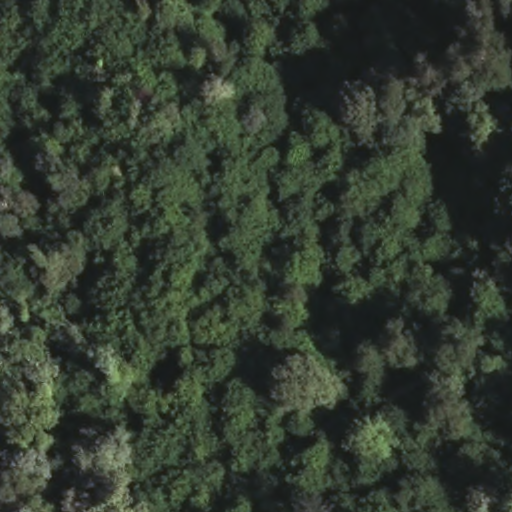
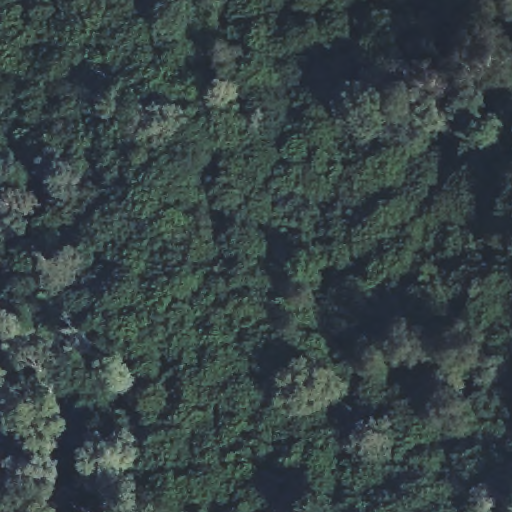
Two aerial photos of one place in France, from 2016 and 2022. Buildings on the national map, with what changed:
[]

